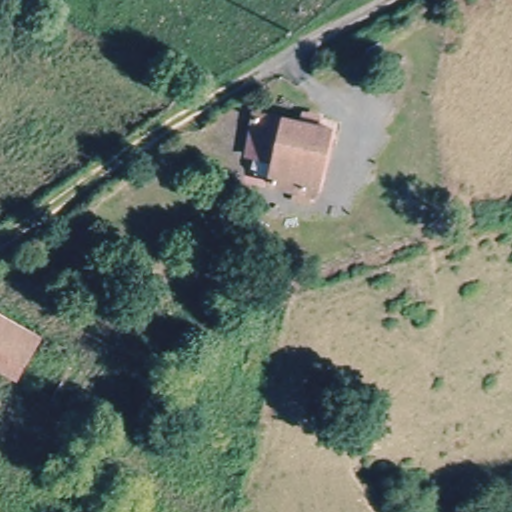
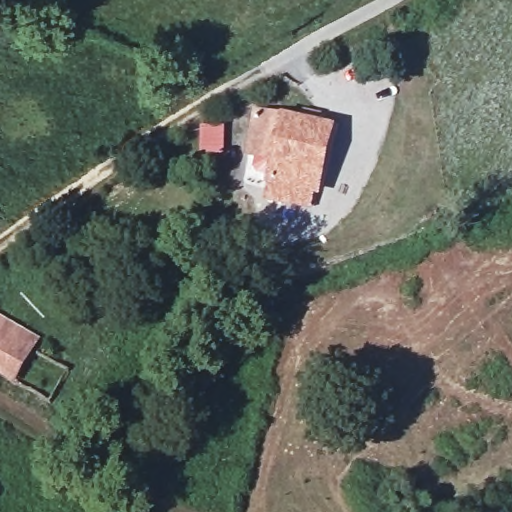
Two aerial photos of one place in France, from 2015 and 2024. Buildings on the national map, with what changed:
unchanged [(254,164),(256,151),(251,150),(260,111),(268,114),(295,120),(305,121),(307,110),(331,116),(330,122),(329,126),(328,129),(326,139),(317,180),(314,192),(310,191),(298,189),(271,183),(273,174),(258,170),(254,164)]
unchanged [(43,341),(24,381),(0,370),(0,322),(43,341)]

